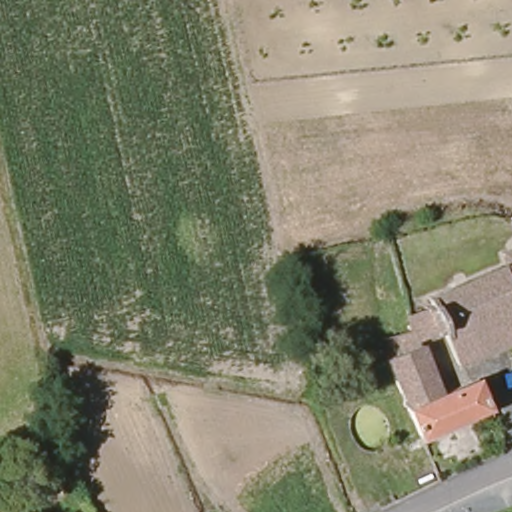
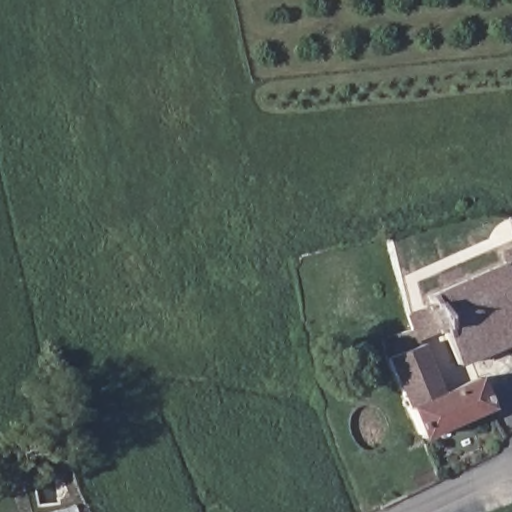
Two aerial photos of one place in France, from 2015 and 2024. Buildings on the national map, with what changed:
unchanged [(410,312),(431,306),(428,296),(445,288),(440,275),(462,267),(468,281),(504,268),(502,255),(512,251),(512,344),(512,345),(463,362),(456,365),(443,339),(421,342),(416,330),(410,312)]
unchanged [(424,438),(397,357),(406,353),(400,336),(416,330),(421,342),(441,396),(481,381),(496,412),(424,438)]

